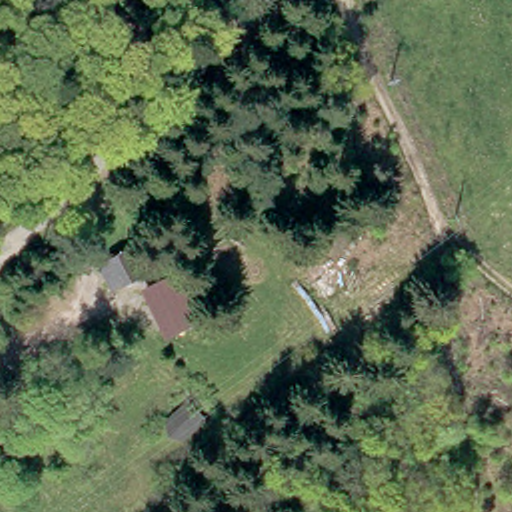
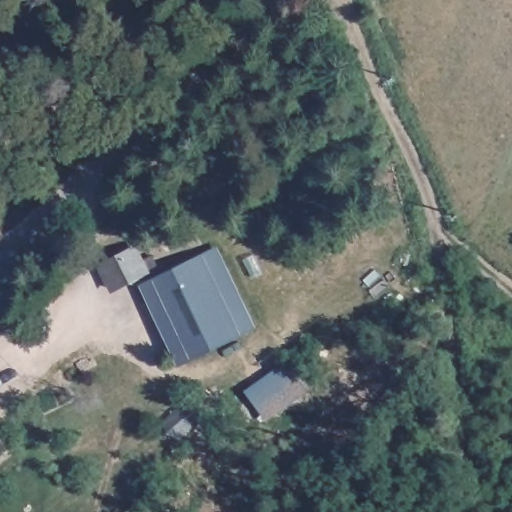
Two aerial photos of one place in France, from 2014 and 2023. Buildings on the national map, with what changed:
unchanged [(106,287),(95,262),(127,246),(140,271),(106,287)]
new [(138,284),(217,247),(256,326),(177,365),(138,284)]
demolished [(163,337),(140,288),(183,268),(204,316),(163,337)]
unchanged [(190,395),(206,421),(172,441),(155,421),(190,395)]

